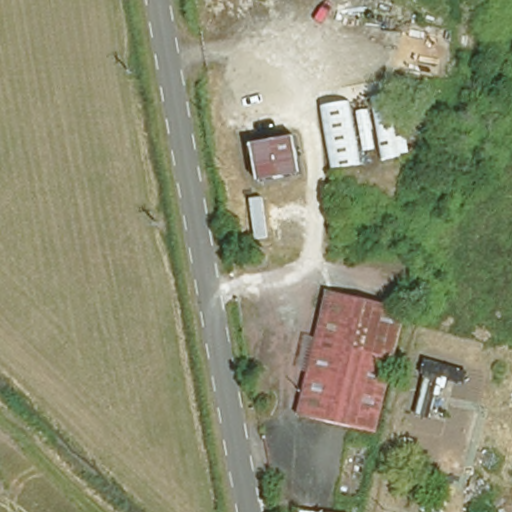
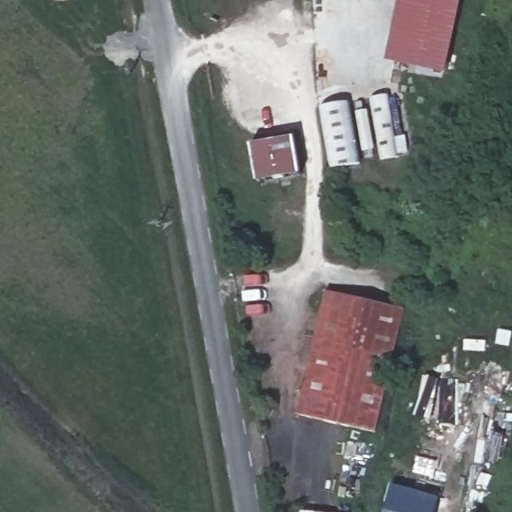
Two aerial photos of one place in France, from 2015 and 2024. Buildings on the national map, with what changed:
new [(462,0),(446,74),(386,61),(398,0),(462,0)]
unchanged [(388,100),(399,159),(381,164),(369,103),(388,100)]
unchanged [(356,166),(333,170),(321,115),(344,110),(356,166)]
unchanged [(304,172),(258,180),(250,145),(297,135),(304,172)]
unchanged [(376,428),(299,410),(327,290),(403,307),(376,428)]
demolished [(460,388),(438,382),(427,419),(410,415),(425,357),(467,371),(460,388)]
new [(439,498),(435,512),(383,512),(391,484),(439,498)]
unchanged [(298,510),(312,512),(298,512),(298,510)]

